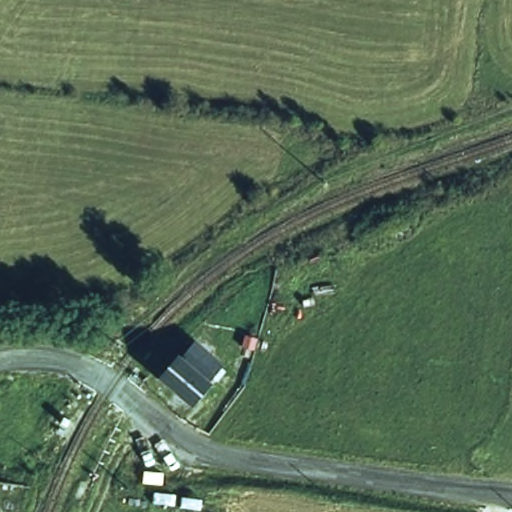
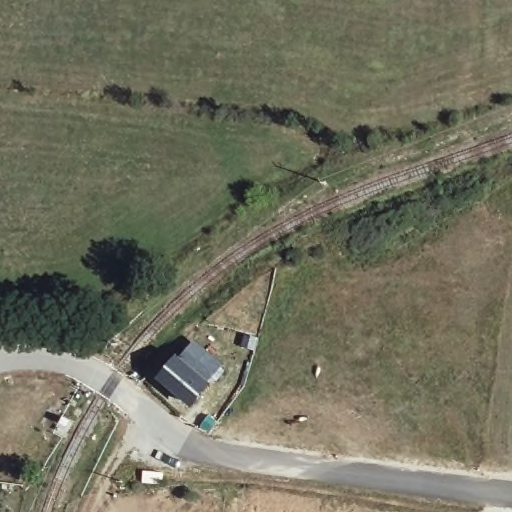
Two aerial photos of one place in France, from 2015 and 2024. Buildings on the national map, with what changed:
unchanged [(222,380),(186,415),(155,381),(191,346),(222,380)]

